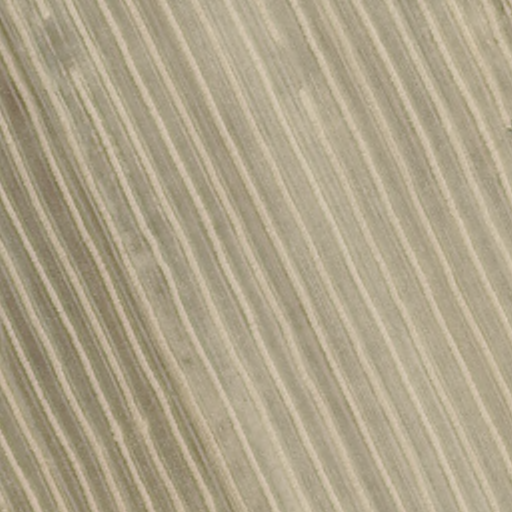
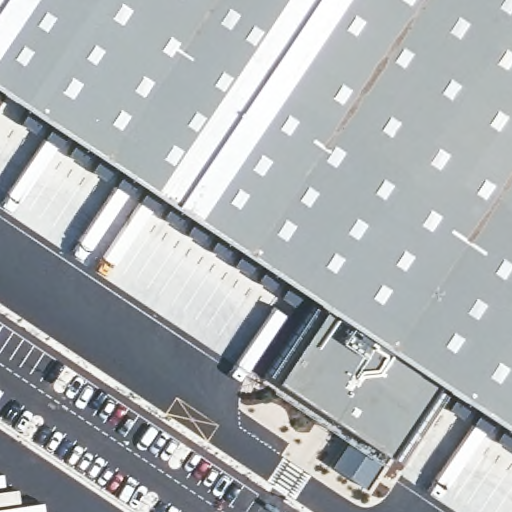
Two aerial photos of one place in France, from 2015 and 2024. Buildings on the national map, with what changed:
new [(437,381),(407,360),(313,298),(295,284),(212,230),(97,151),(0,89),(0,0),(512,0),(512,430),(437,381)]
new [(275,354),(313,298),(407,360),(437,381),(413,419),(381,460),(348,438),(331,424),(262,376),(275,354)]
new [(348,438),(381,460),(362,487),(331,466),(348,438)]

